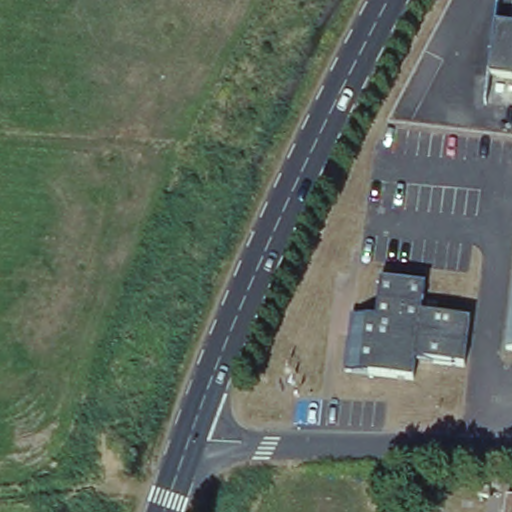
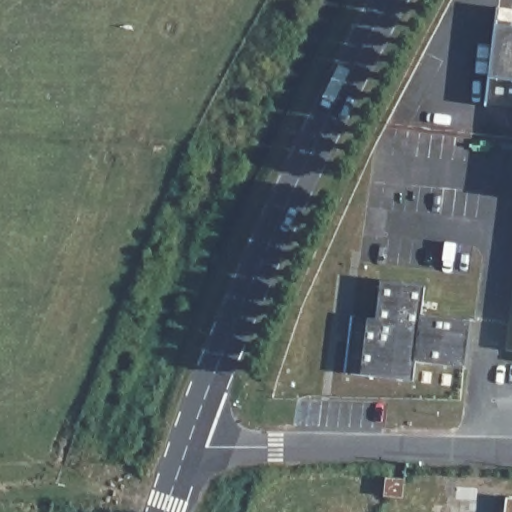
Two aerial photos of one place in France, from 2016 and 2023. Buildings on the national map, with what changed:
unchanged [(512,22),(512,38),(494,35),(497,19),(512,22)]
unchanged [(494,35),(512,38),(512,75),(489,71),(494,35)]
unchanged [(384,275),(428,281),(425,309),(474,315),(468,362),(419,354),(417,375),(350,367),(354,332),(357,312),(363,313),(379,315),(384,275)]
unchanged [(512,321),(512,345),(509,345),(512,321)]
unchanged [(385,476),(403,479),(401,497),(382,494),(385,476)]
unchanged [(480,488),(488,489),(487,495),(479,494),(480,488)]
unchanged [(512,492),(512,512),(508,512),(510,492),(512,492)]

